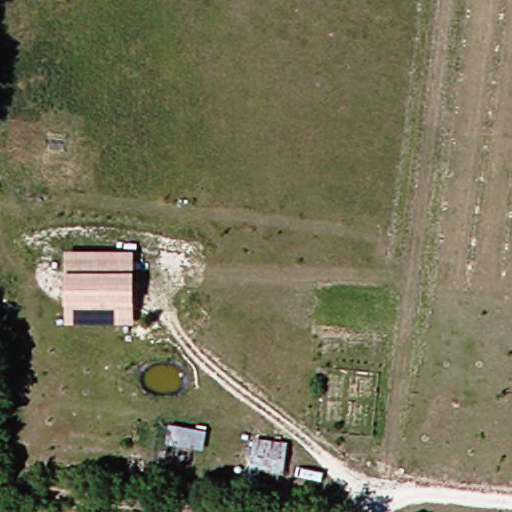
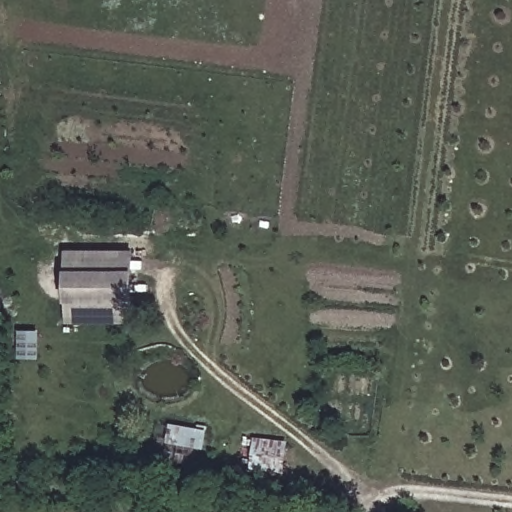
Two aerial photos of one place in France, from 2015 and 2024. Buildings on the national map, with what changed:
unchanged [(70,255),(132,254),(133,320),(112,321),(112,274),(71,275),(70,255)]
unchanged [(112,274),(112,321),(72,322),(71,275),(112,274)]
unchanged [(170,422),(210,427),(207,452),(166,445),(170,422)]
unchanged [(289,446),(286,474),(254,471),(257,443),(289,446)]

